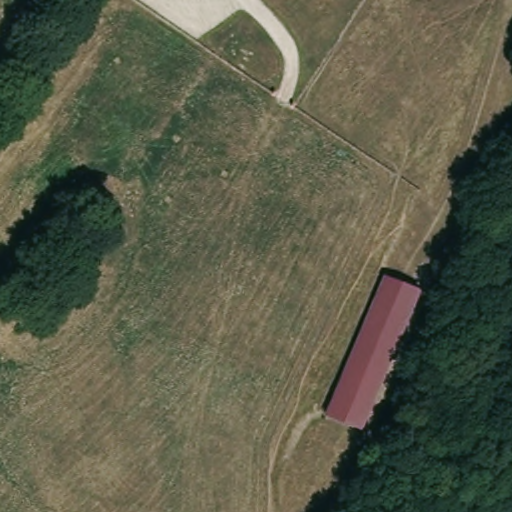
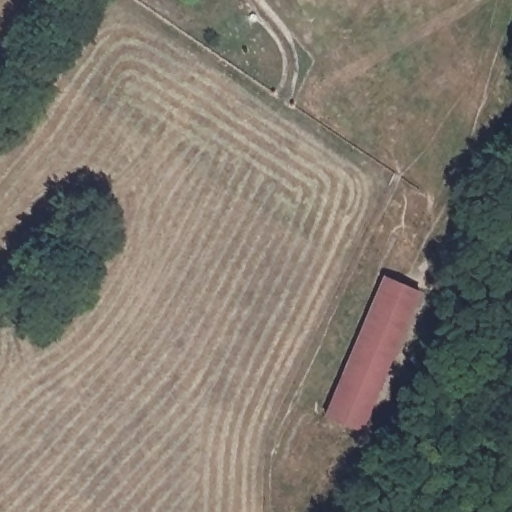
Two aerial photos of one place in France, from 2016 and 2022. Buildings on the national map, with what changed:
unchanged [(418,293),(362,431),(327,417),(383,279),(418,293)]

